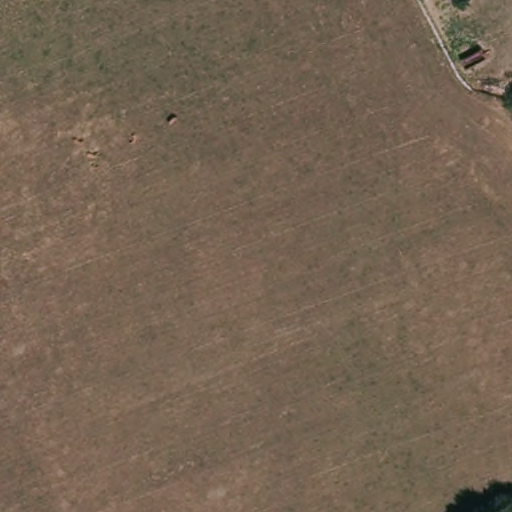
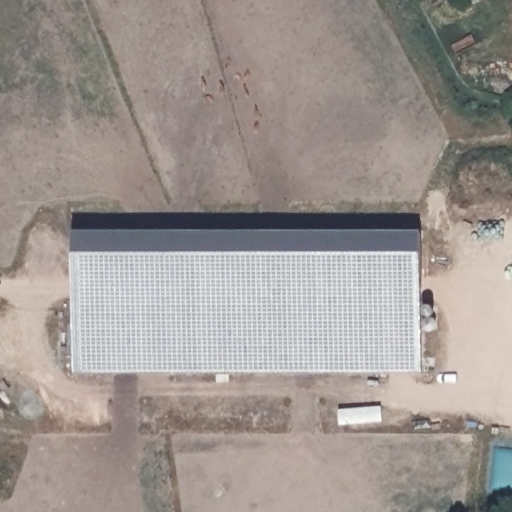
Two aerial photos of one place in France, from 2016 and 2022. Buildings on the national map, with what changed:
new [(74,372),(73,232),(420,232),(420,374),(74,372)]

